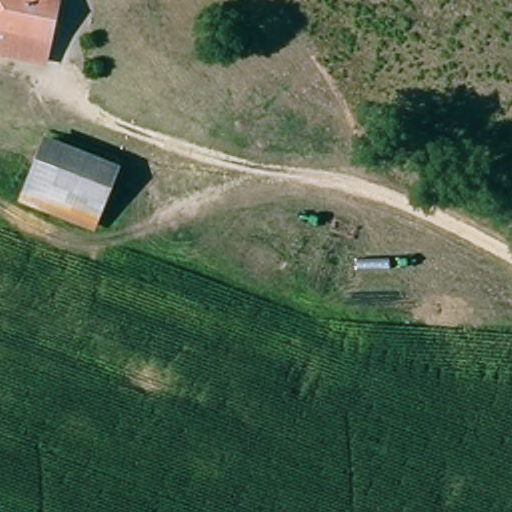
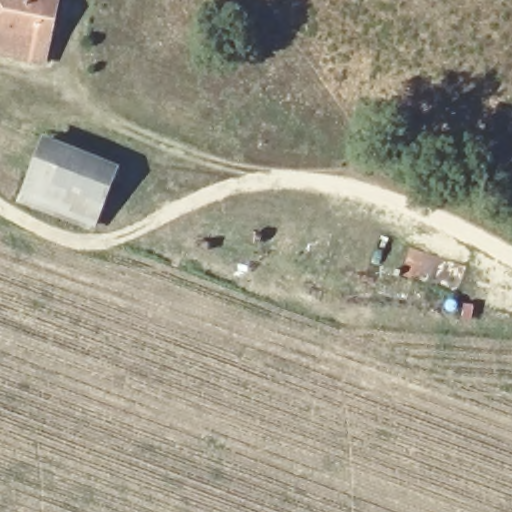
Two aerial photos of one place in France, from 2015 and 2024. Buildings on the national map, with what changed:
unchanged [(40,67),(2,56),(0,55),(0,0),(60,0),(40,67)]
unchanged [(124,167),(119,179),(107,209),(23,176),(35,147),(39,137),(124,167)]
unchanged [(98,233),(21,205),(12,202),(23,176),(107,209),(98,233)]

